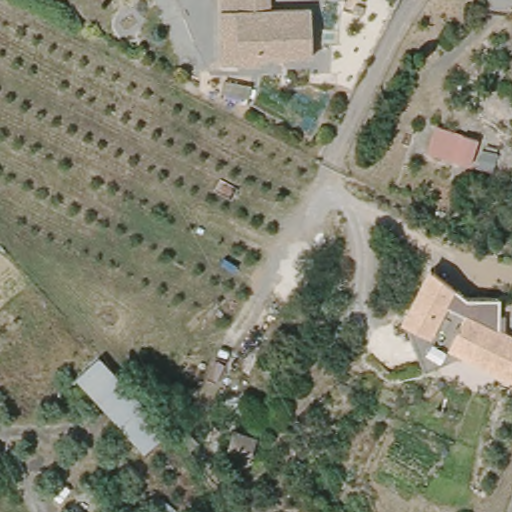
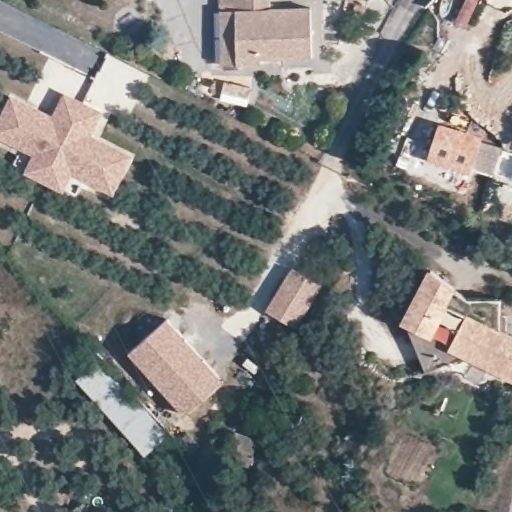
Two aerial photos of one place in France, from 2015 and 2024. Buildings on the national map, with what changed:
unchanged [(221,9),(221,0),(269,0),(269,5),(310,4),(312,53),(262,55),(263,60),(238,61),(223,61),(221,9)]
new [(10,98),(52,119),(63,95),(97,112),(85,135),(127,155),(109,190),(68,169),(59,186),(26,170),(35,152),(0,134),(0,118),(10,98)]
unchanged [(470,167),(430,154),(438,128),(478,141),(470,167)]
new [(289,272),(320,286),(301,328),(270,314),(289,272)]
unchanged [(421,372),(397,325),(427,272),(465,303),(497,303),(498,329),(512,336),(512,386),(451,359),(421,372)]
new [(163,320),(219,384),(181,416),(126,353),(163,320)]
unchanged [(172,432),(144,458),(75,381),(104,354),(172,432)]
unchanged [(177,444),(188,433),(197,443),(186,454),(177,444)]
unchanged [(248,465),(225,457),(234,433),(257,441),(248,465)]

